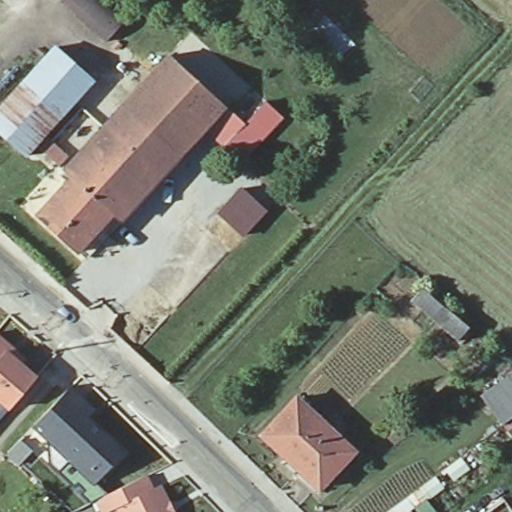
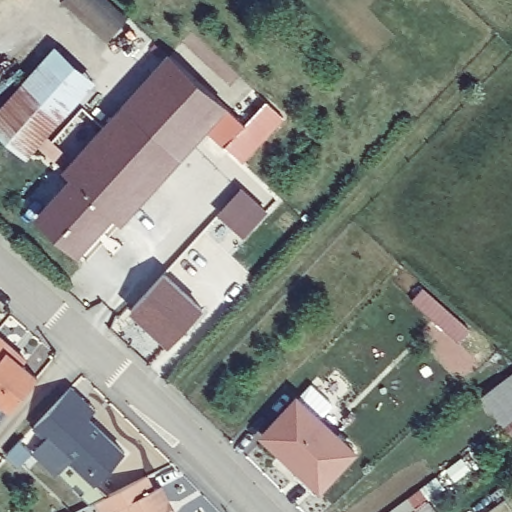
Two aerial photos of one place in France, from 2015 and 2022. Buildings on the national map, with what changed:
unchanged [(123,15),(96,42),(53,1),(55,0),(107,0),(123,15)]
unchanged [(52,46),(91,80),(27,155),(0,132),(0,106),(52,46)]
unchanged [(68,170),(63,165),(168,51),(229,107),(208,129),(123,219),(115,211),(81,248),(35,206),(68,170)]
unchanged [(251,128),(271,106),(288,121),(246,165),(208,129),(229,107),(251,128)]
unchanged [(236,192),(264,217),(242,241),(214,216),(236,192)]
new [(205,307),(170,347),(129,311),(166,271),(205,307)]
unchanged [(453,325),(442,336),(397,295),(408,283),(453,325)]
unchanged [(24,358),(20,363),(36,376),(9,407),(0,400),(0,338),(10,346),(24,358)]
unchanged [(480,402),(512,367),(512,424),(508,426),(480,402)]
unchanged [(93,410),(86,420),(123,450),(94,483),(31,430),(65,390),(78,399),(93,410)]
unchanged [(350,449),(316,485),(259,432),(293,396),(350,449)]
unchanged [(21,441),(9,455),(2,448),(14,434),(21,441)]
unchanged [(161,492),(167,503),(172,512),(119,512),(118,508),(110,512),(103,512),(97,500),(145,478),(151,491),(154,490),(161,492)]

